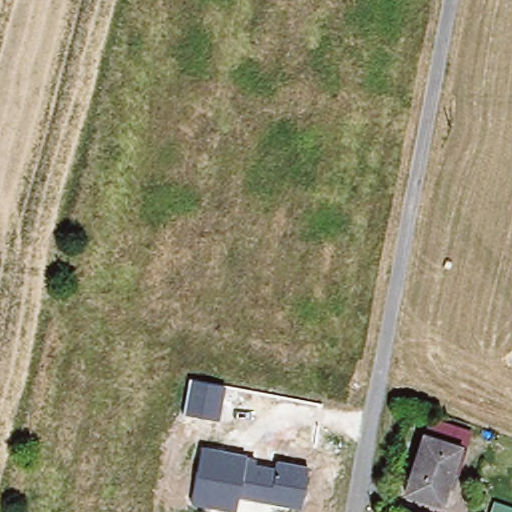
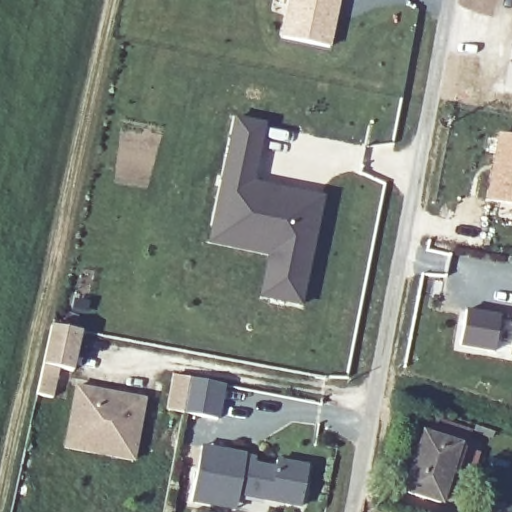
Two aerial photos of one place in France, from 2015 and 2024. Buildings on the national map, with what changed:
new [(288,0),(336,0),(326,47),(280,38),(288,0)]
new [(234,119),(262,125),(250,184),(320,198),(299,305),(260,297),(268,255),(207,242),(234,119)]
new [(512,148),(512,204),(488,200),(497,145),(512,148)]
new [(463,313),(497,319),(491,354),(457,348),(463,313)]
new [(50,325),(79,330),(70,370),(56,367),(51,396),(35,393),(50,325)]
unchanged [(225,385),(219,421),(183,413),(189,379),(225,385)]
new [(63,446),(75,385),(142,398),(131,458),(114,455),(89,451),(63,446)]
unchanged [(458,446),(441,502),(406,490),(425,434),(458,446)]
unchanged [(256,463),(274,467),(276,458),(308,465),(300,510),(239,498),(235,512),(230,512),(190,503),(202,446),(257,458),(256,463)]

